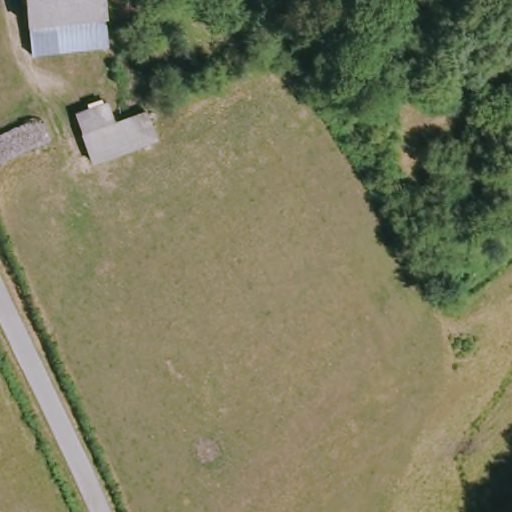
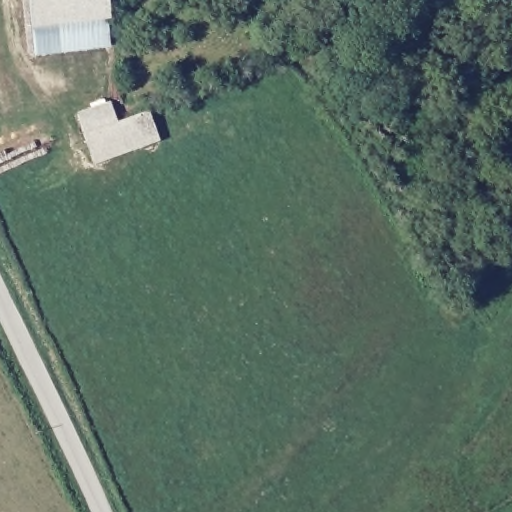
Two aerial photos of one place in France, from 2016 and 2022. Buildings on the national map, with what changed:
unchanged [(102,26),(102,49),(39,56),(35,31),(33,23),(31,0),(110,0),(112,24),(102,26)]
unchanged [(141,112),(155,141),(100,166),(86,133),(80,118),(111,105),(119,123),(126,120),(141,112)]

